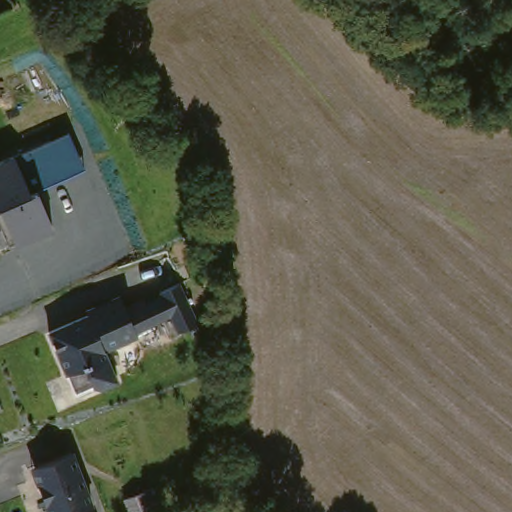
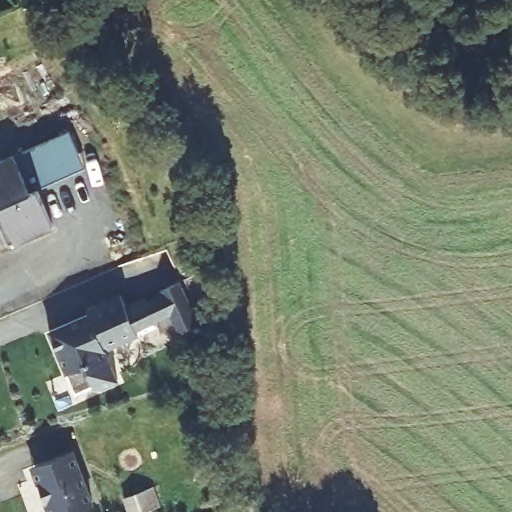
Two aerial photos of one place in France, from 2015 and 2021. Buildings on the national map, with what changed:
unchanged [(82,167),(35,186),(50,228),(13,244),(0,213),(0,160),(12,155),(68,131),(82,167)]
unchanged [(198,273),(215,315),(196,322),(179,281),(198,273)]
unchanged [(89,313),(87,308),(121,294),(137,335),(104,348),(114,375),(96,382),(90,379),(71,386),(64,366),(65,362),(68,355),(67,353),(60,355),(49,329),(89,313)]
unchanged [(90,508),(81,512),(46,512),(34,482),(41,479),(36,468),(69,455),(73,466),(90,508)]

